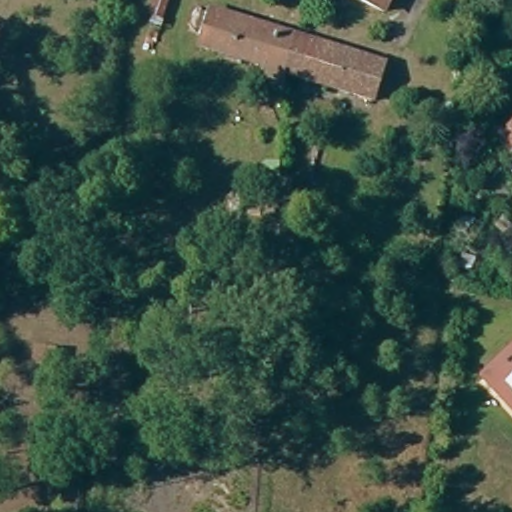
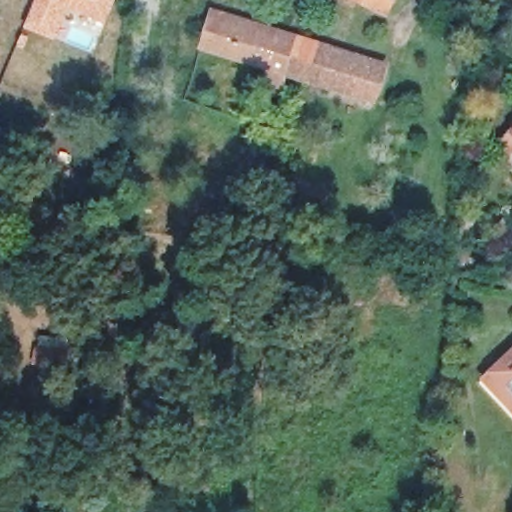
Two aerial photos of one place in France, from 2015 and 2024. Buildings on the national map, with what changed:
new [(33,0),(115,0),(105,25),(67,11),(55,40),(22,27),(33,0)]
unchanged [(379,11),(357,0),(384,0),(379,11)]
unchanged [(184,44),(194,7),(214,12),(297,39),(284,76),(202,49),(184,44)]
unchanged [(512,25),(512,63),(510,66),(491,44),(512,25)]
unchanged [(297,39),(385,67),(373,104),(284,76),(297,39)]
unchanged [(500,141),(510,131),(512,129),(512,155),(500,141)]
unchanged [(505,389),(497,396),(482,381),(512,354),(512,397),(505,389)]
demolished [(458,478),(447,467),(452,460),(452,455),(463,445),(477,461),(458,478)]

